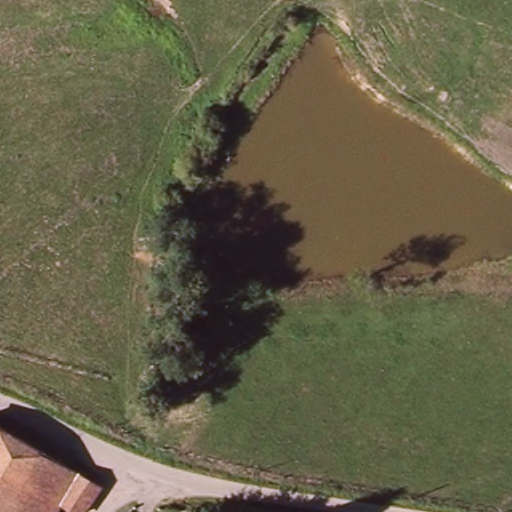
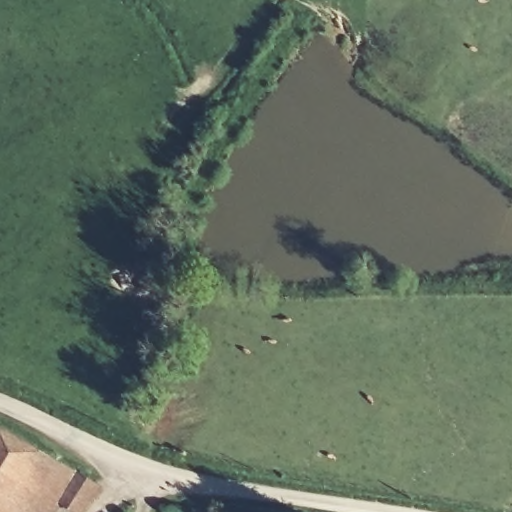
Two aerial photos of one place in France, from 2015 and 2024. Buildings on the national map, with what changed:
unchanged [(98,483),(80,512),(76,512),(60,501),(53,512),(0,512),(0,426),(98,483)]

